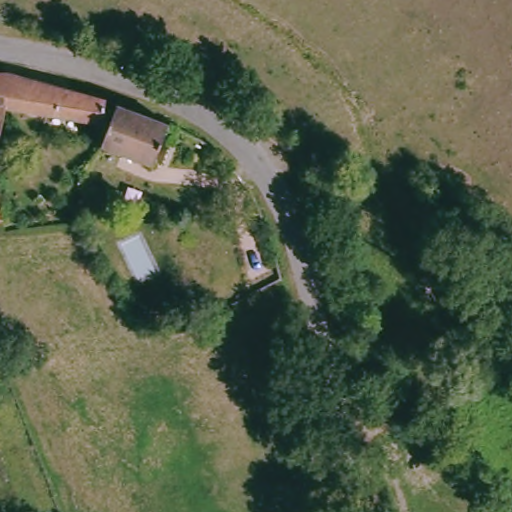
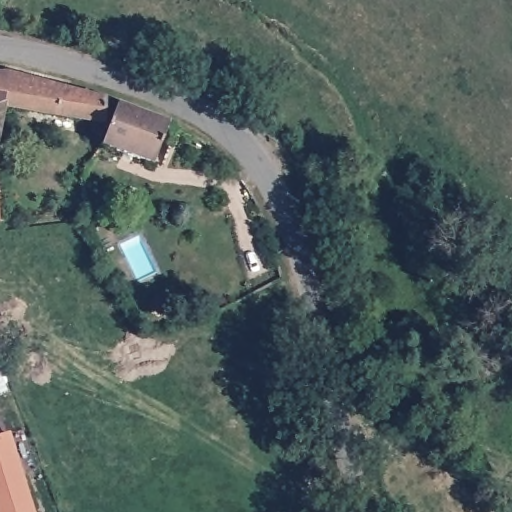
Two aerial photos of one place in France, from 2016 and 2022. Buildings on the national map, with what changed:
unchanged [(122,98),(116,115),(111,113),(109,118),(0,87),(0,68),(9,67),(122,98)]
unchanged [(0,119),(0,92),(1,119),(0,119)]
unchanged [(160,159),(108,138),(116,115),(122,98),(127,99),(176,118),(160,159)]
unchanged [(2,168),(0,168),(0,119),(1,119),(2,168)]
unchanged [(0,215),(0,168),(2,168),(4,215),(0,215)]
unchanged [(252,292),(246,278),(279,261),(282,277),(252,292)]
new [(0,436),(11,433),(36,512),(0,512),(0,436)]

